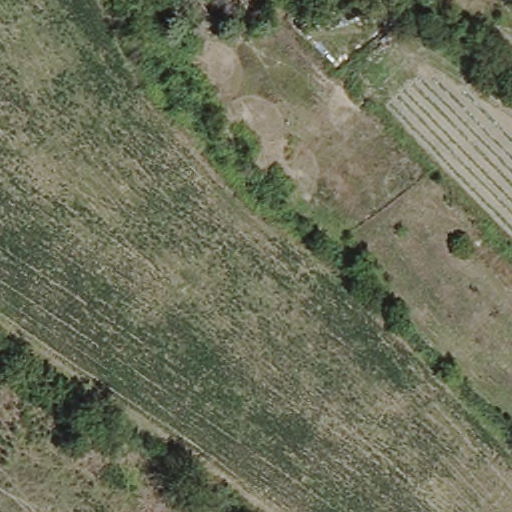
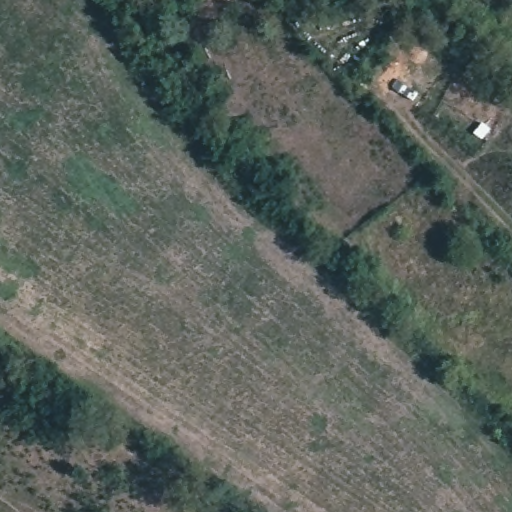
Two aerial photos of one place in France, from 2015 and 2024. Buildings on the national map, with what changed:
[]

